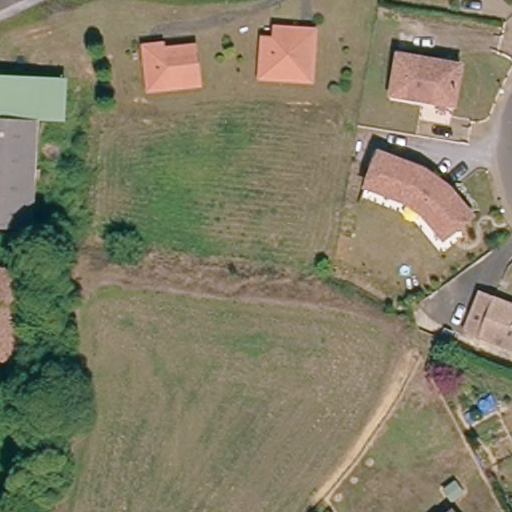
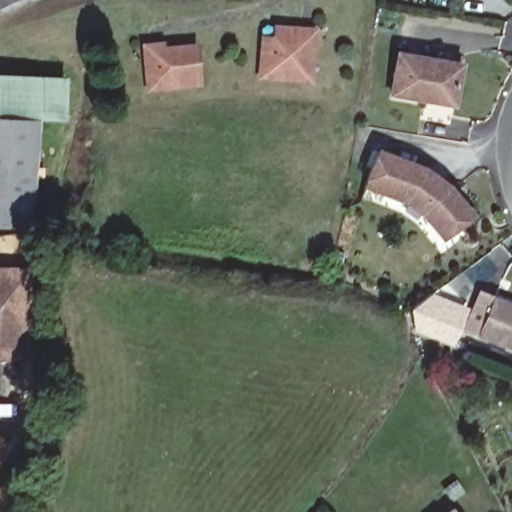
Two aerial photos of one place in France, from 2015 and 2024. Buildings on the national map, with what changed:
unchanged [(268,82),(271,43),(282,43),(283,31),(305,34),(322,34),(320,48),(318,85),(268,82)]
unchanged [(201,84),(151,89),(148,59),(147,46),(164,45),(164,49),(197,46),(201,84)]
unchanged [(459,104),(398,94),(404,54),(466,64),(459,104)]
unchanged [(37,120),(0,118),(0,76),(44,79),(69,80),(64,149),(40,148),(35,148),(37,120)]
unchanged [(0,227),(0,118),(37,120),(35,148),(31,229),(0,227)]
unchanged [(437,222),(430,214),(414,202),(373,186),(386,152),(431,169),(456,188),(479,214),(461,229),(451,238),(437,222)]
unchanged [(0,362),(0,272),(33,274),(29,363),(0,362)]
new [(412,310),(432,293),(469,308),(454,347),(414,332),(412,310)]
unchanged [(471,329),(486,293),(512,303),(512,345),(471,329)]

